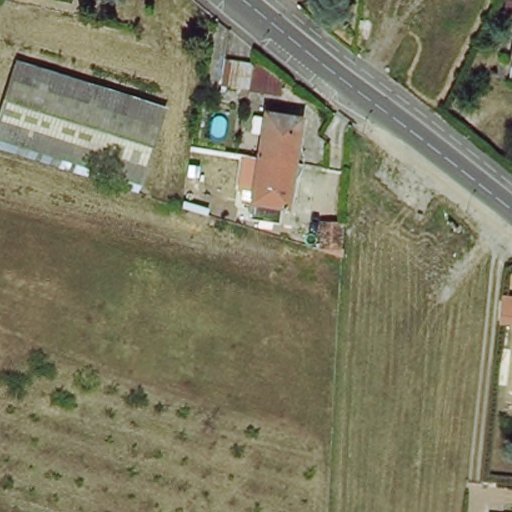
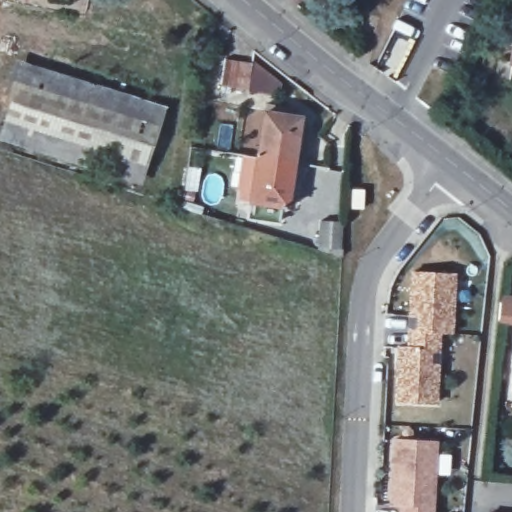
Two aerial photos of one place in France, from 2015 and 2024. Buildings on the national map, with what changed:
unchanged [(511,56),(512,51),(512,56),(511,56)]
unchanged [(222,86),(226,60),(253,64),(250,89),(222,86)]
unchanged [(144,110),(125,170),(17,136),(36,74),(144,110)]
unchanged [(274,105),(305,113),(298,159),(263,154),(274,105)]
unchanged [(298,159),(287,207),(252,200),(263,154),(298,159)]
unchanged [(282,215),(278,230),(256,225),(259,210),(282,215)]
unchanged [(353,245),(334,242),(338,213),(355,215),(353,245)]
new [(412,328),(412,273),(457,273),(455,330),(442,329),(412,328)]
new [(509,303),(512,303),(512,324),(507,323),(509,303)]
new [(401,342),(411,342),(412,328),(442,329),(438,399),(399,397),(401,342)]
new [(437,438),(433,512),(402,512),(403,500),(393,500),(397,435),(437,438)]

